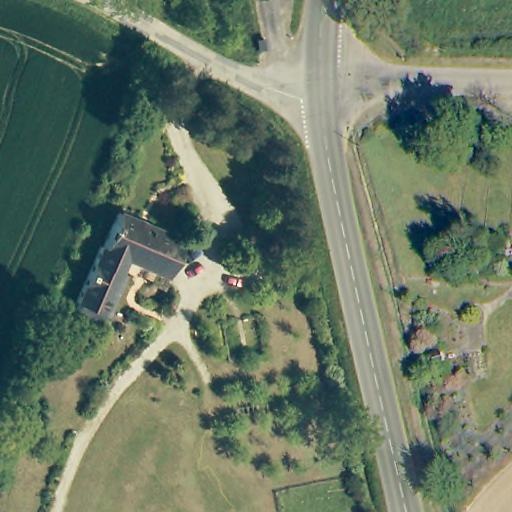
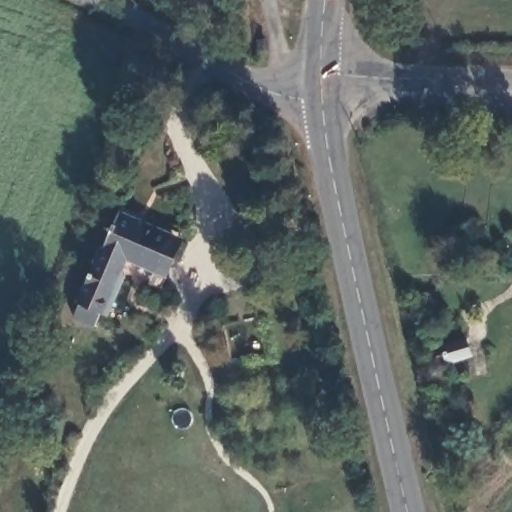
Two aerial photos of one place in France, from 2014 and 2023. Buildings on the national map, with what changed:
unchanged [(101,310),(100,308),(94,322),(73,313),(79,300),(76,298),(101,242),(103,243),(119,206),(183,234),(161,283),(152,279),(157,268),(123,253),(116,266),(120,268),(124,270),(121,278),(116,287),(106,311),(101,310)]

